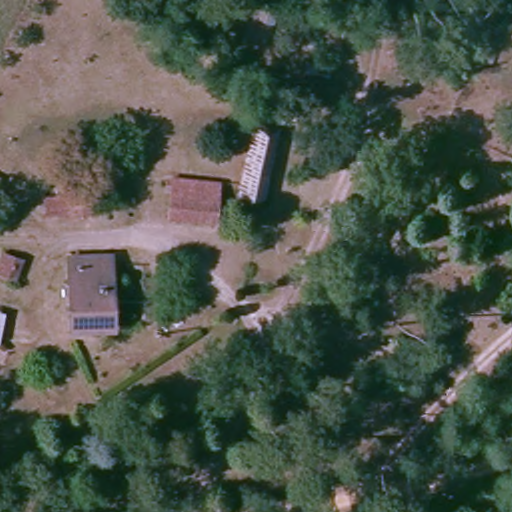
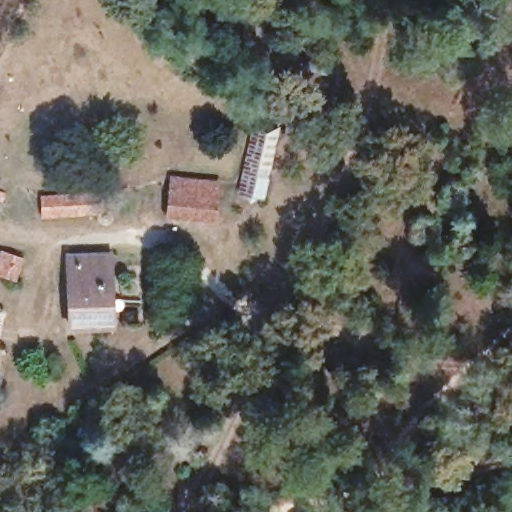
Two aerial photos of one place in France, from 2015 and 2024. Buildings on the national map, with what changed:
unchanged [(237,192),(239,183),(260,127),(284,136),(267,186),(262,203),(237,192)]
unchanged [(217,215),(168,214),(168,179),(217,178),(217,215)]
unchanged [(99,189),(100,214),(71,217),(70,215),(46,216),(43,194),(99,189)]
unchanged [(3,256),(0,260),(0,254),(3,256)]
unchanged [(72,328),(70,268),(70,255),(113,254),(113,267),(114,328),(72,328)]

